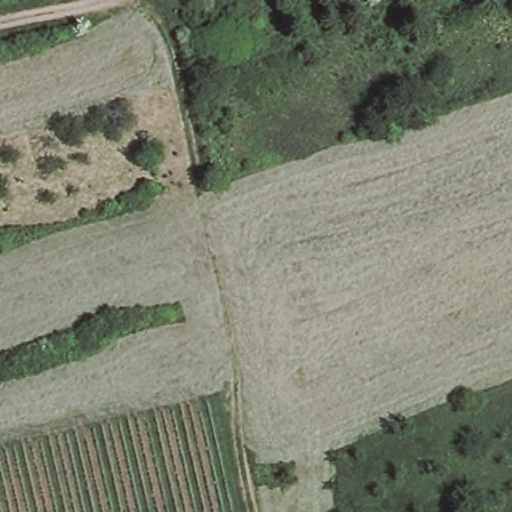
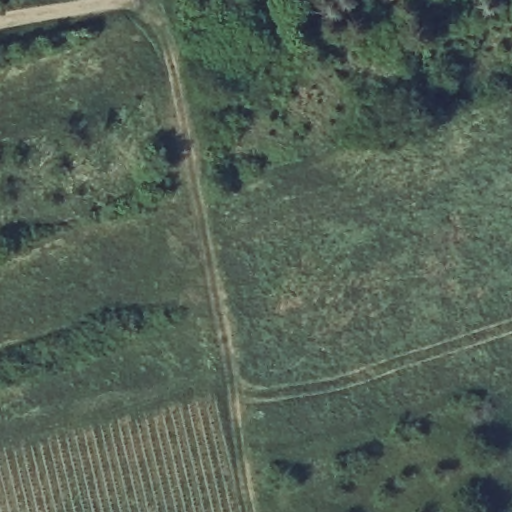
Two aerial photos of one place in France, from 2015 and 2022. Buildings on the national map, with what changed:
unchanged [(373,0),(379,0),(374,1),(373,0)]

